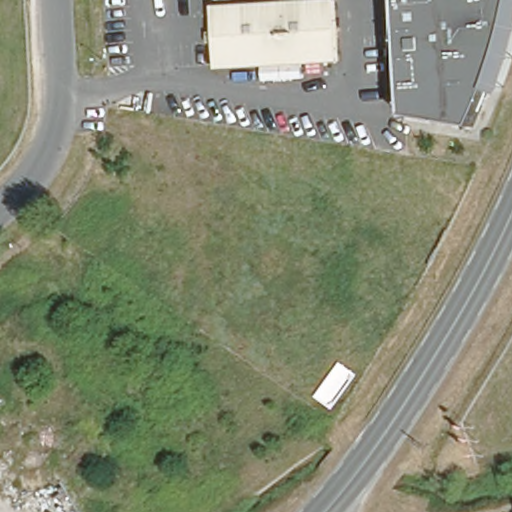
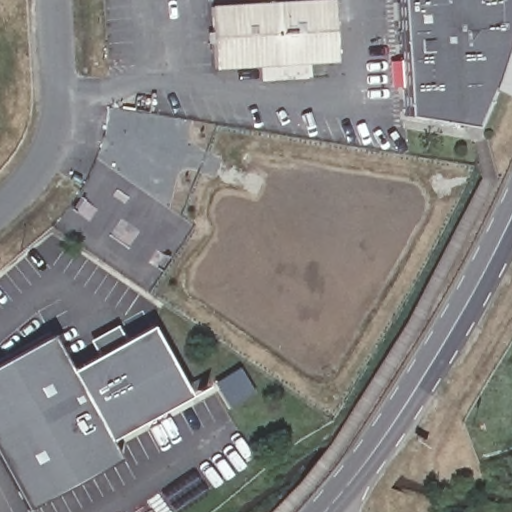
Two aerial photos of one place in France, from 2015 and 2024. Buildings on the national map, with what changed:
unchanged [(331,0),(335,61),(333,61),(212,68),(208,6),(303,0),(331,0)]
unchanged [(502,94),(483,89),(470,127),(403,114),(397,0),(512,0),(512,70),(502,94)]
new [(68,371),(95,356),(88,341),(115,325),(124,341),(149,327),(187,396),(107,440),(117,460),(27,510),(0,460),(0,364),(50,337),(68,371)]

